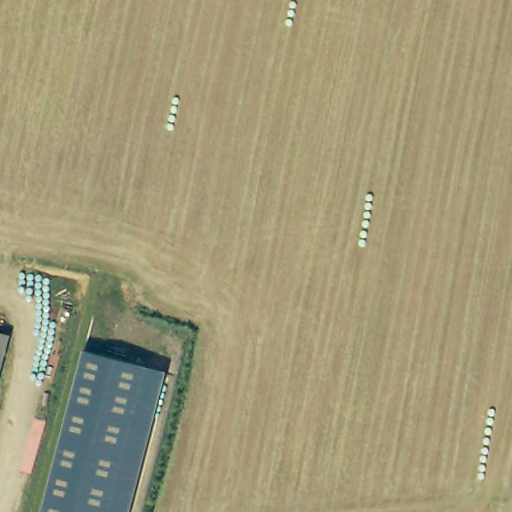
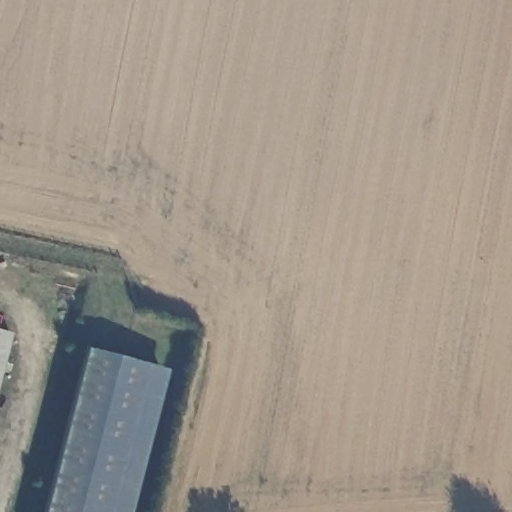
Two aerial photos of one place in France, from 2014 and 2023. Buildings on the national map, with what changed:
unchanged [(12,332),(0,372),(0,328),(12,332)]
unchanged [(157,380),(116,512),(47,512),(95,360),(157,380)]

